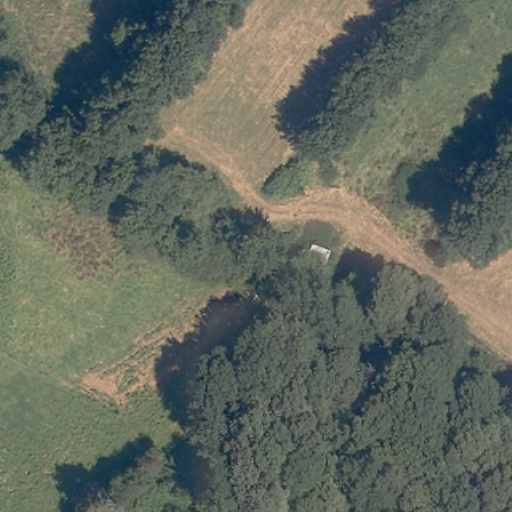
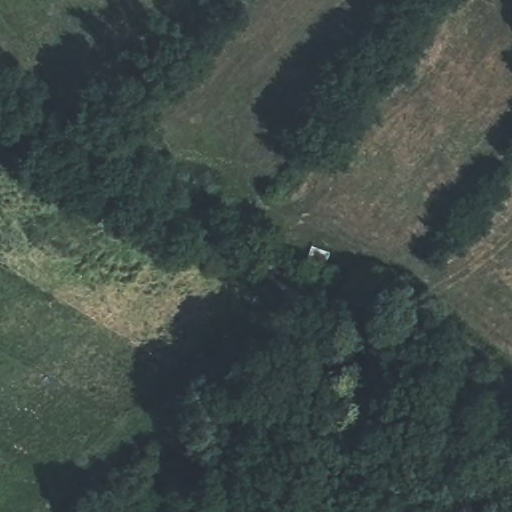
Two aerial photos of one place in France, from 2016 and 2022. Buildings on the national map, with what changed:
unchanged [(326,269),(307,265),(313,244),(335,252),(326,269)]

